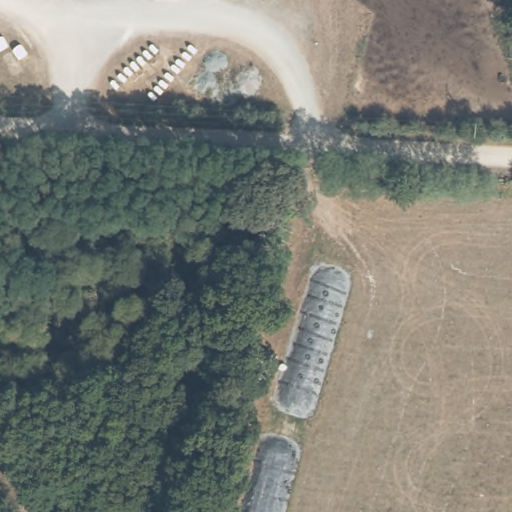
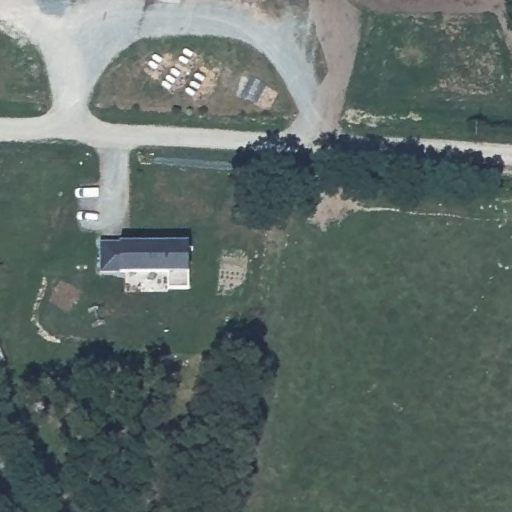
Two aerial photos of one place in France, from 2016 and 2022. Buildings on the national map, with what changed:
new [(189,288),(169,288),(167,271),(100,271),(99,241),(188,241),(189,288)]

